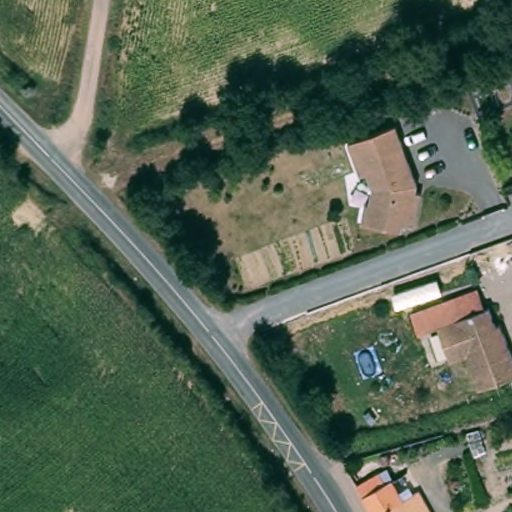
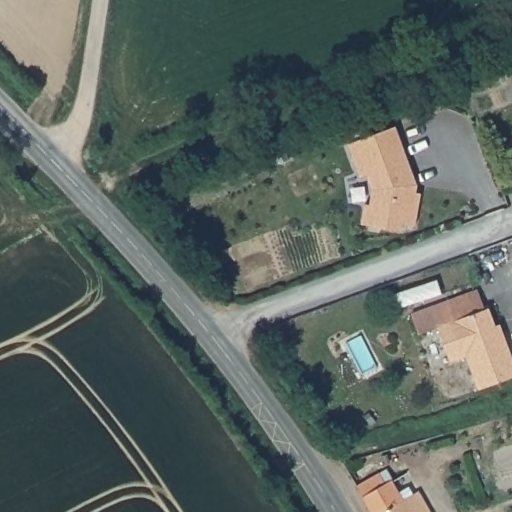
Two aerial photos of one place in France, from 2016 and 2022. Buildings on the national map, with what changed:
unchanged [(408,163),(416,185),(415,193),(420,194),(415,226),(402,224),(400,231),(361,224),(365,204),(370,205),(372,189),(366,174),(359,176),(347,143),(395,126),(402,147),(408,163)]
unchanged [(416,333),(410,313),(477,289),(483,309),(480,311),(432,328),(416,333)]
unchanged [(512,377),(473,391),(461,357),(445,363),(432,328),(480,311),(483,309),(490,327),(494,337),(498,335),(512,372),(512,377)]
unchanged [(355,489),(377,476),(383,486),(388,483),(400,503),(416,494),(426,512),(368,512),(355,489)]

